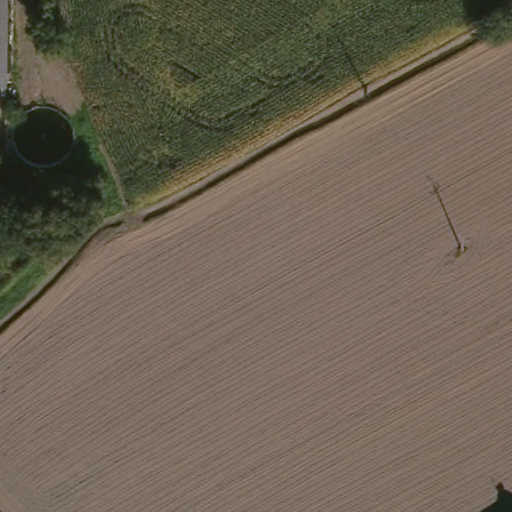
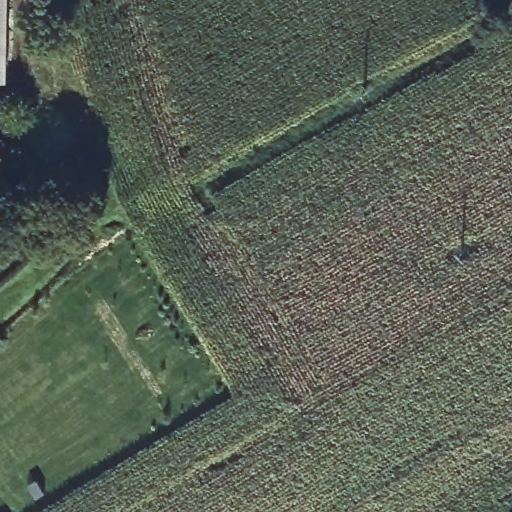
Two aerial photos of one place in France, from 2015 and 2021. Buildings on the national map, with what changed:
unchanged [(6,82),(0,83),(0,0),(5,0),(6,82)]

